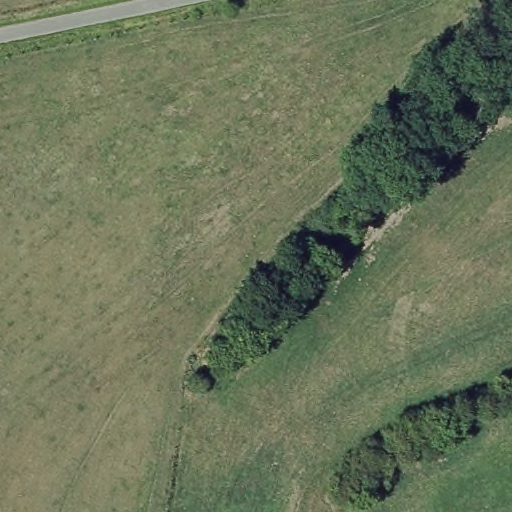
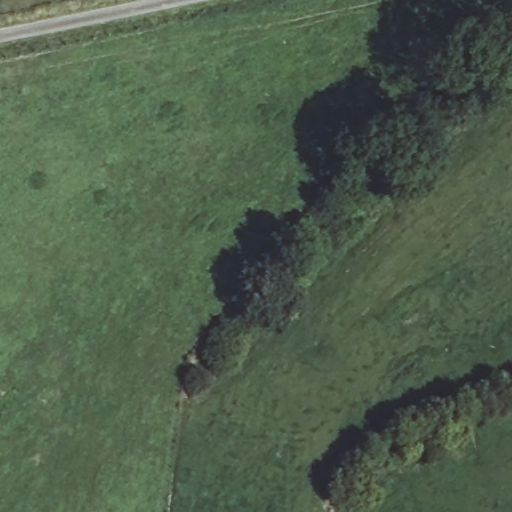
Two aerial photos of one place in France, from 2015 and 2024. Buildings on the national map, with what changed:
[]

